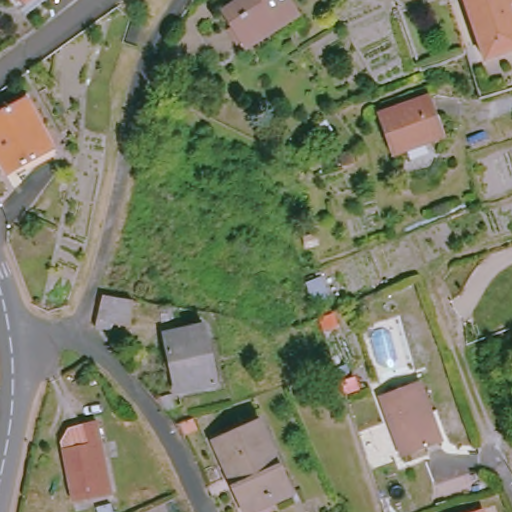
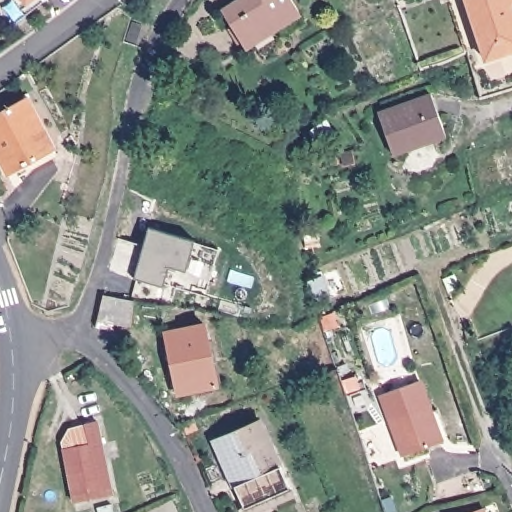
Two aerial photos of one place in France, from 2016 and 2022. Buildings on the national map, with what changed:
unchanged [(28,5),(23,0),(34,0),(28,5)]
unchanged [(222,14),(245,0),(255,0),(275,27),(242,47),(222,14)]
unchanged [(297,20),(278,31),(275,27),(255,0),(284,0),(297,20)]
unchanged [(490,55),(472,0),(512,0),(512,48),(490,55)]
unchanged [(377,111),(430,93),(437,114),(384,132),(377,111)]
unchanged [(23,162),(5,171),(0,163),(0,112),(23,100),(49,149),(54,157),(27,171),(23,162)]
unchanged [(390,150),(384,132),(437,114),(443,132),(390,150)]
new [(185,271),(169,266),(163,286),(136,278),(149,229),(193,241),(185,271)]
unchanged [(97,323),(105,294),(134,297),(130,322),(113,323),(97,323)]
unchanged [(202,326),(211,385),(173,389),(167,329),(202,326)]
unchanged [(417,378),(442,440),(402,454),(378,392),(417,378)]
unchanged [(57,437),(60,425),(88,422),(105,490),(67,500),(57,437)]
unchanged [(288,492),(245,512),(243,512),(213,444),(257,424),(288,492)]
unchanged [(472,512),(469,512),(472,511),(472,512)]

